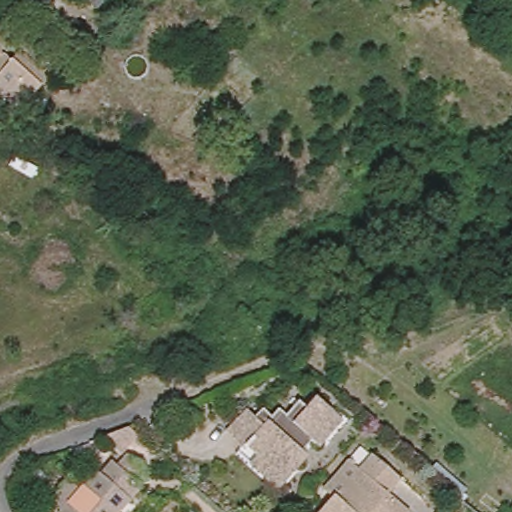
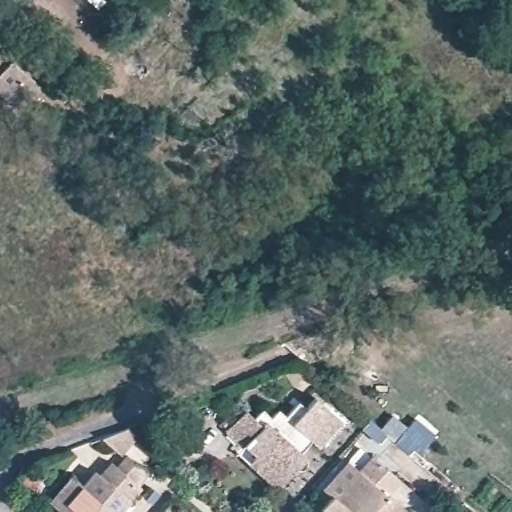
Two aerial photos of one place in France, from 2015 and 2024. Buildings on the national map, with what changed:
unchanged [(0,99),(0,58),(5,62),(15,52),(40,73),(47,64),(53,69),(37,87),(15,112),(0,99)]
unchanged [(253,465),(261,457),(250,447),(230,432),(251,411),(259,418),(266,409),(276,418),(277,416),(283,409),(290,416),(303,402),(311,409),(320,398),(336,411),(348,421),(330,442),(324,449),(317,442),(306,454),(312,459),(302,470),(282,491),(253,465)]
unchanged [(410,510),(408,512),(315,512),(331,492),(337,498),(363,468),(359,465),(371,451),(399,475),(387,491),(410,510)]
unchanged [(77,477),(88,487),(101,472),(106,477),(117,463),(146,489),(125,512),(64,512),(54,502),(77,477)]

